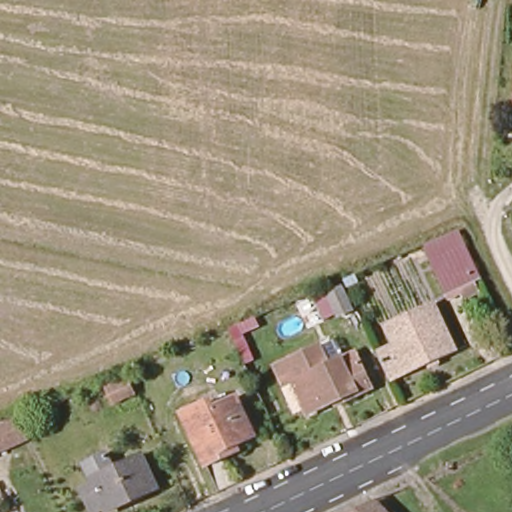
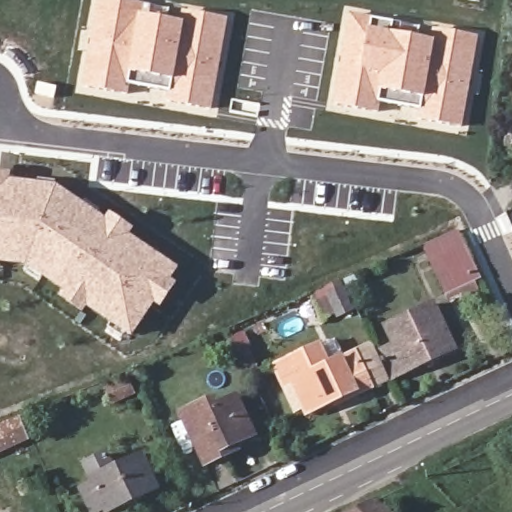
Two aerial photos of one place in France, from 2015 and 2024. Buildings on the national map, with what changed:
new [(128,85),(124,95),(89,89),(91,74),(86,73),(100,0),(129,0),(143,2),(140,14),(183,22),(184,10),(225,17),(208,110),(172,104),(172,94),(128,85)]
new [(419,110),(382,102),(379,112),(334,105),(349,14),(372,17),(419,26),(414,37),(429,40),(433,27),(478,35),(462,127),(417,118),(419,110)]
new [(10,180),(57,185),(105,220),(109,214),(134,231),(130,235),(179,269),(171,281),(177,283),(161,308),(155,305),(131,337),(88,308),(84,314),(59,298),(64,292),(26,265),(0,262),(0,172),(11,174),(10,180)]
unchanged [(444,287),(429,252),(457,239),(473,274),(444,287)]
unchanged [(344,307),(334,286),(349,281),(358,301),(344,307)]
unchanged [(398,378),(389,359),(406,352),(394,327),(439,306),(460,350),(398,378)]
new [(242,327),(255,352),(244,358),(230,332),(242,327)]
unchanged [(338,406),(337,405),(305,418),(291,385),(284,387),(275,368),(317,348),(326,368),(354,356),(369,391),(338,406)]
new [(113,407),(104,389),(129,377),(138,395),(113,407)]
unchanged [(229,454),(232,462),(211,470),(199,442),(189,446),(173,412),(218,392),(224,409),(244,401),(262,440),(229,454)]
unchanged [(0,455),(0,423),(18,416),(31,443),(0,455)]
unchanged [(118,512),(113,512),(112,510),(106,512),(95,512),(86,492),(100,486),(91,465),(113,455),(120,472),(150,457),(164,491),(118,512)]
unchanged [(386,502),(394,512),(364,512),(386,502)]

